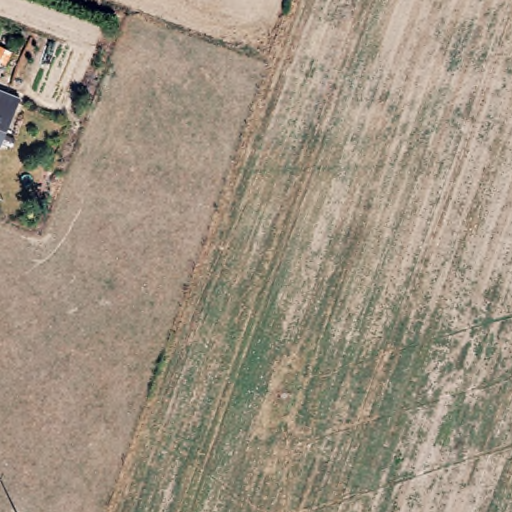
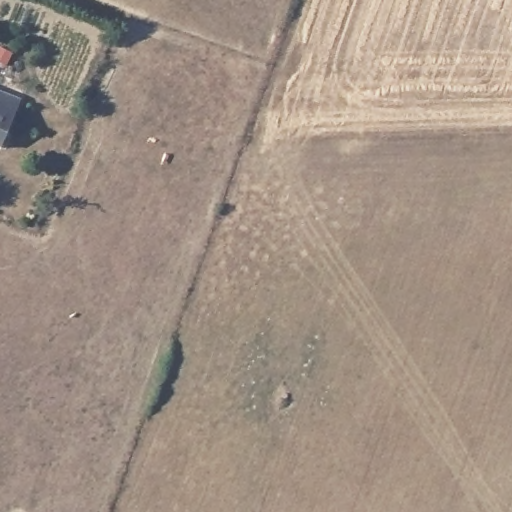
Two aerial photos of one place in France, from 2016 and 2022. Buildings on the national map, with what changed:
unchanged [(0,146),(0,89),(20,98),(0,146)]

